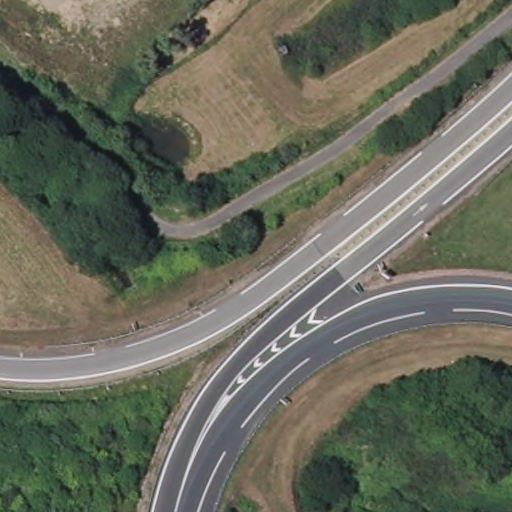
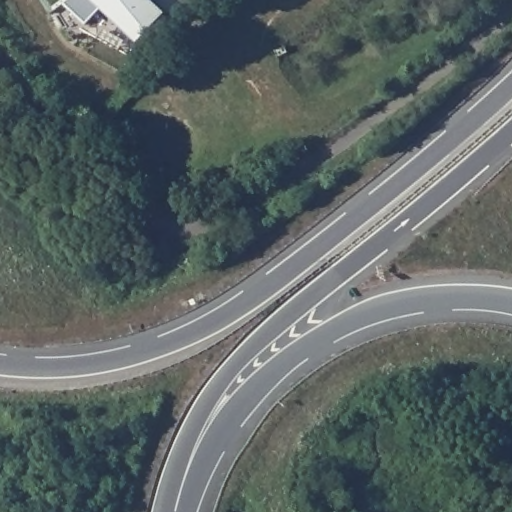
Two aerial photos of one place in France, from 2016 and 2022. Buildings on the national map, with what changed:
new [(66,0),(151,0),(165,13),(136,43),(100,9),(85,25),(62,4),(66,0)]

